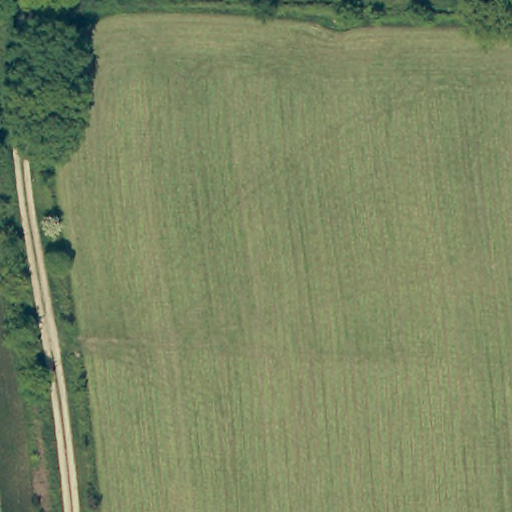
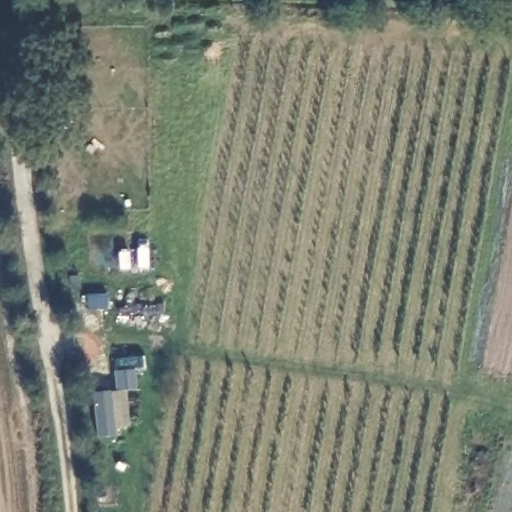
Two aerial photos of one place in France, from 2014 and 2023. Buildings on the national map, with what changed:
new [(114,394),(117,435),(97,439),(94,394),(114,394)]

